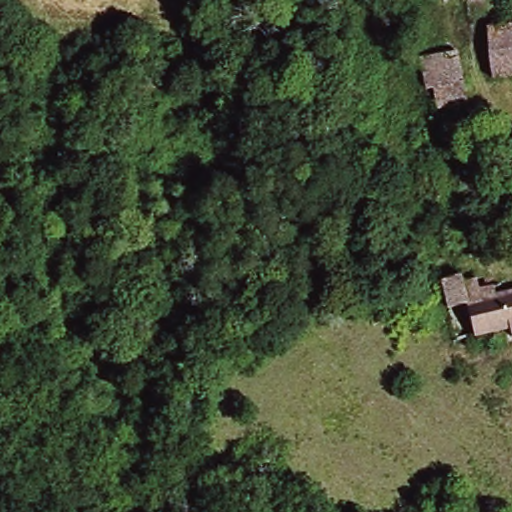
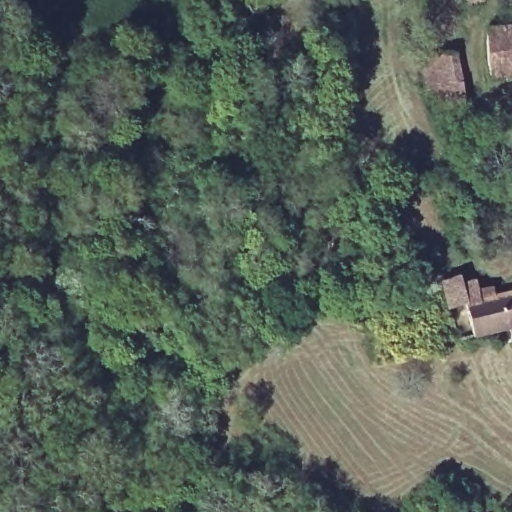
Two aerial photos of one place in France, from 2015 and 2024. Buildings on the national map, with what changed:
unchanged [(479,7),(479,0),(509,0),(509,7),(479,7)]
unchanged [(459,57),(464,114),(431,116),(431,97),(422,93),(419,62),(459,57)]
unchanged [(472,308),(469,285),(488,282),(490,291),(512,287),(512,334),(465,343),(457,311),(472,308)]

